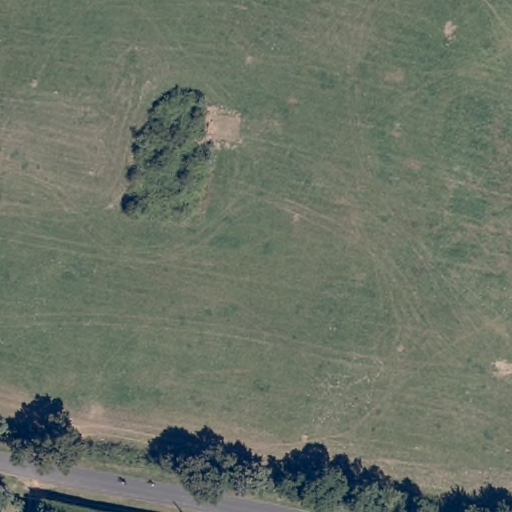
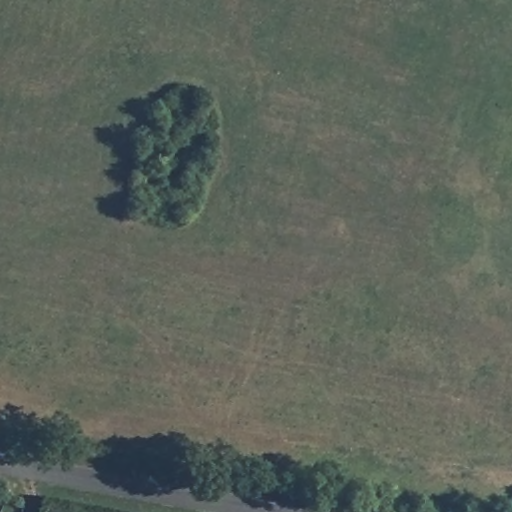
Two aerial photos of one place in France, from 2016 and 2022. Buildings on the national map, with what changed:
[]

